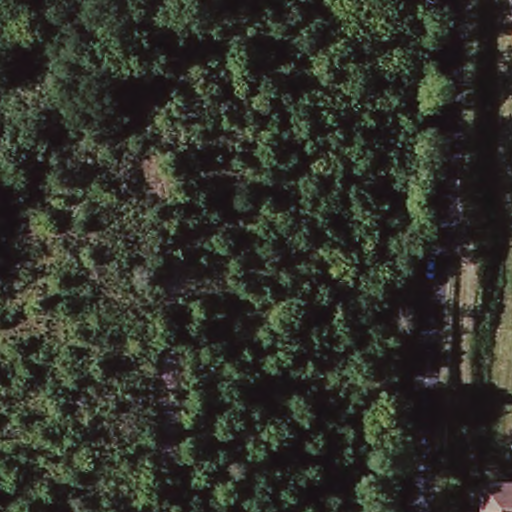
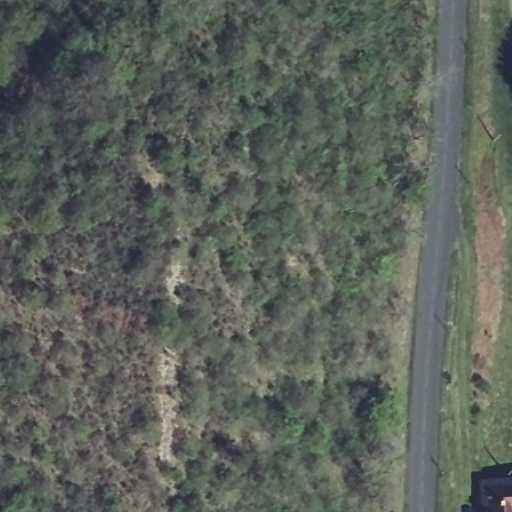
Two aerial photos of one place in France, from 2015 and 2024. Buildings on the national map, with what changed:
unchanged [(487,488),(512,489),(512,512),(486,512),(487,488)]

